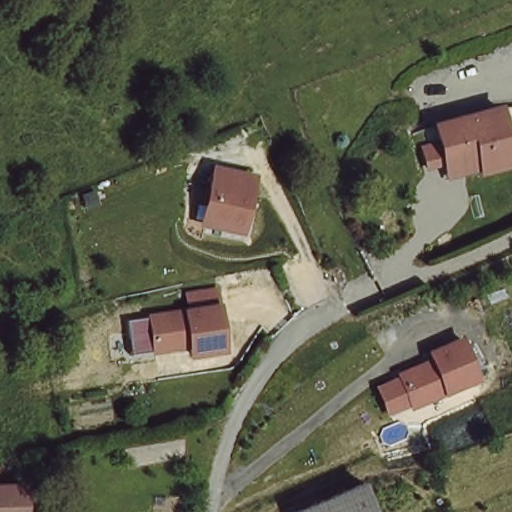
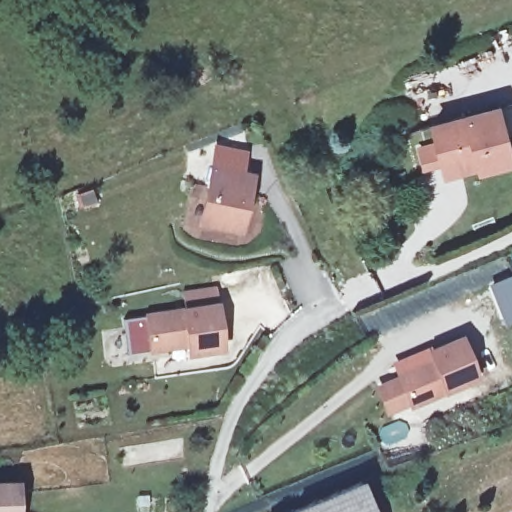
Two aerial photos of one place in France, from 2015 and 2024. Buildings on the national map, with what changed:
unchanged [(441,161),(440,157),(423,162),(418,142),(435,137),(431,121),(465,112),(497,104),(501,118),(510,158),(478,166),(478,164),(445,172),(441,161)]
unchanged [(254,175),(241,231),(205,222),(212,187),(208,186),(213,166),(254,175)]
new [(512,273),(512,325),(505,328),(486,284),(512,273)]
unchanged [(215,306),(216,319),(220,349),(186,353),(185,345),(148,350),(147,343),(144,316),(215,306)]
unchanged [(425,349),(456,335),(465,354),(474,375),(409,404),(399,381),(395,372),(428,357),(425,349)]
unchanged [(18,496),(21,512),(0,512),(0,478),(18,475),(22,495),(18,496)]
unchanged [(374,512),(288,512),(360,482),(374,512)]

